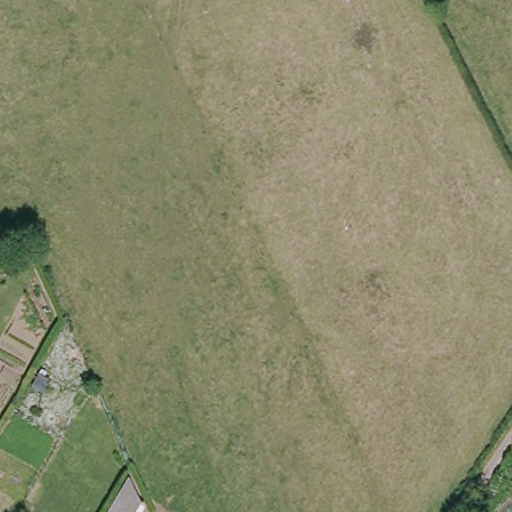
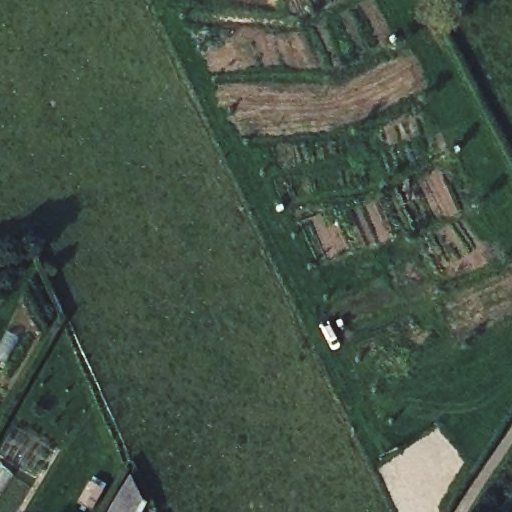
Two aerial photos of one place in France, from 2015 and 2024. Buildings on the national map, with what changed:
unchanged [(140,500),(134,512),(107,512),(127,479),(140,500)]

